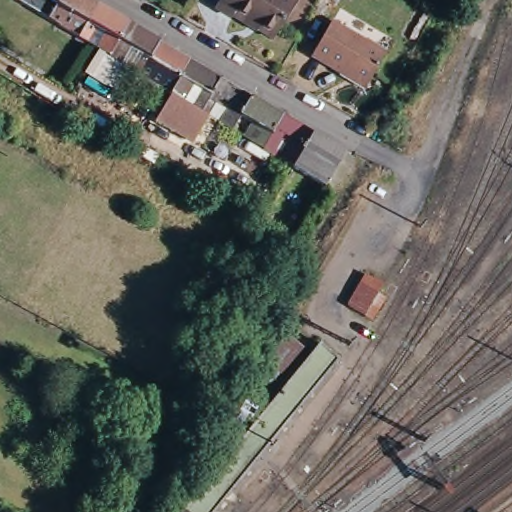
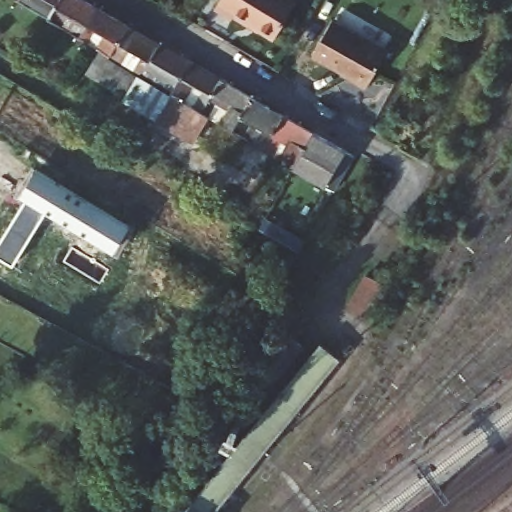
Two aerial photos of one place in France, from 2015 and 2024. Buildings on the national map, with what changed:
unchanged [(48,15),(23,0),(56,0),(48,15)]
unchanged [(97,2),(80,34),(48,15),(56,0),(94,0),(97,2)]
unchanged [(221,0),(297,0),(276,36),(236,13),(234,17),(217,6),(221,0)]
unchanged [(127,20),(110,52),(100,47),(80,34),(97,2),(127,20)]
unchanged [(160,39),(142,71),(110,52),(127,20),(160,39)]
unchanged [(337,20),(392,51),(374,82),(337,60),(335,64),(319,54),(337,20)]
unchanged [(190,56),(172,90),(142,71),(160,39),(190,56)]
unchanged [(106,50),(110,52),(135,67),(117,94),(110,90),(105,96),(86,84),(90,75),(84,70),(100,47),(106,50)]
unchanged [(221,75),(202,109),(172,90),(190,56),(221,75)]
unchanged [(252,92),(233,127),(202,109),(221,75),(252,92)]
unchanged [(175,92),(202,109),(210,113),(192,144),(154,121),(172,90),(175,92)]
unchanged [(283,110),(264,146),(233,127),(252,92),(283,110)]
unchanged [(314,129),(294,164),(264,146),(283,110),(314,129)]
unchanged [(355,152),(334,188),(294,164),(314,129),(355,152)]
new [(115,255),(45,211),(14,265),(0,257),(0,242),(25,200),(19,197),(35,167),(133,225),(115,255)]
unchanged [(259,230),(265,219),(304,243),(297,253),(259,230)]
unchanged [(397,288),(376,325),(350,305),(369,273),(397,288)]
unchanged [(224,512),(190,512),(325,348),(345,365),(224,512)]

